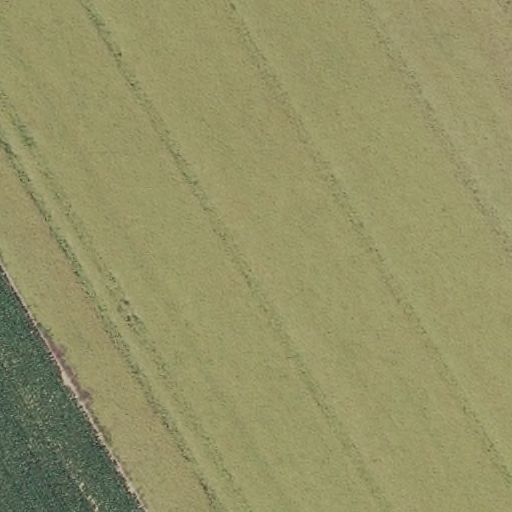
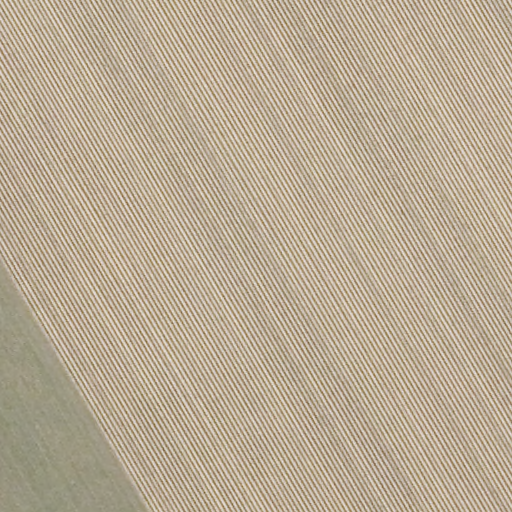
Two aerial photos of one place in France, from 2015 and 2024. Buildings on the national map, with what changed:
[]

